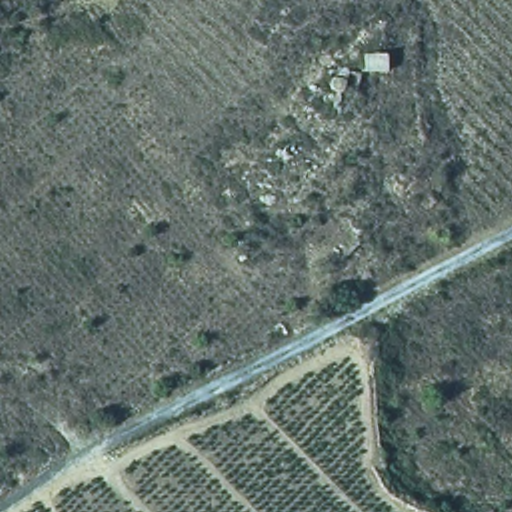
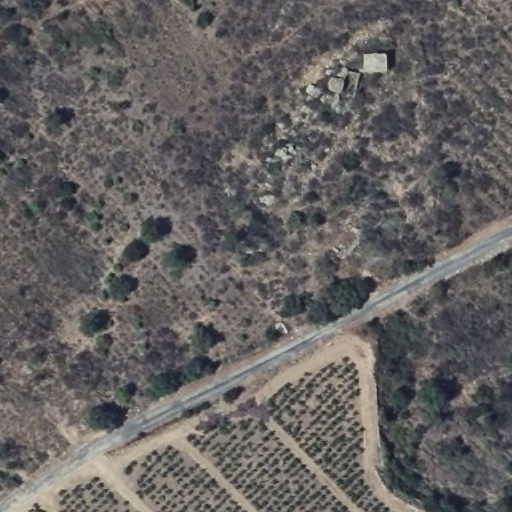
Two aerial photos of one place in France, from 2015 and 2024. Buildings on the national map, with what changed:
unchanged [(362,49),(386,49),(387,70),(362,68),(362,49)]

